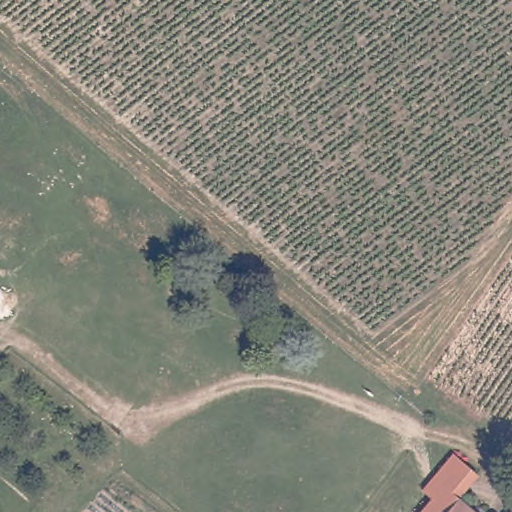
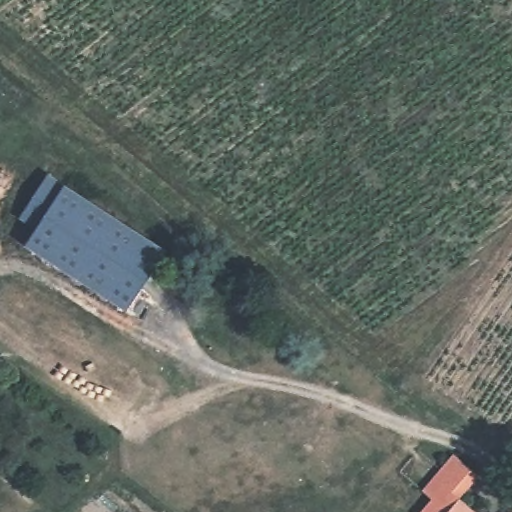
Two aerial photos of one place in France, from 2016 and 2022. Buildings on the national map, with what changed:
new [(47,174),(166,251),(127,310),(26,244),(37,227),(20,217),(47,174)]
unchanged [(464,496),(449,512),(420,512),(432,498),(422,488),(453,452),(482,475),(464,496)]
unchanged [(485,512),(452,512),(465,496),(485,512)]

